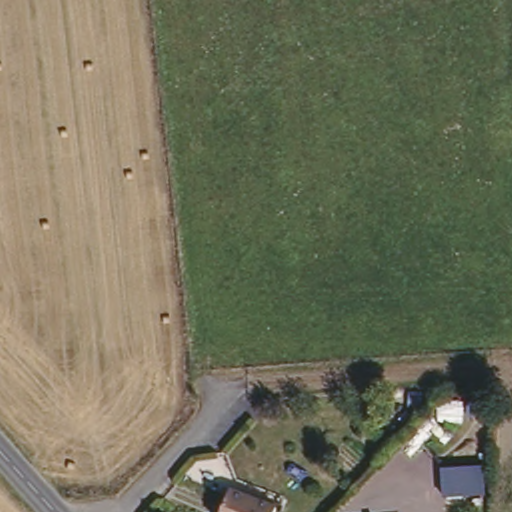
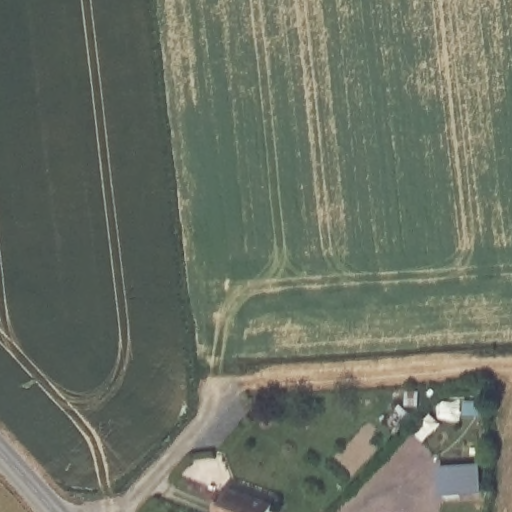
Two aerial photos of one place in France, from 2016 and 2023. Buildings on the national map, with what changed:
unchanged [(487,465),(489,498),(447,502),(446,468),(487,465)]
unchanged [(271,512),(216,512),(225,485),(275,501),(271,512)]

